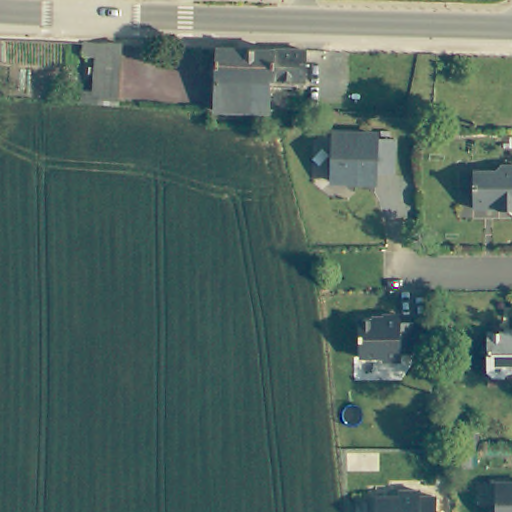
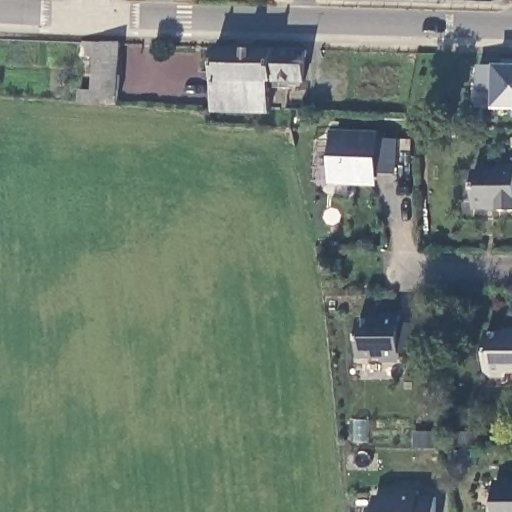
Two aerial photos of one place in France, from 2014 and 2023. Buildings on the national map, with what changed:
unchanged [(82,97),(93,98),(94,62),(82,61),(82,45),(121,47),(119,111),(81,109),(82,97)]
unchanged [(247,116),(210,115),(212,51),(270,52),(268,82),(268,84),(267,114),(267,117),(247,116)]
unchanged [(317,82),(301,82),(301,84),(270,84),(271,52),(317,53),(317,82)]
new [(494,107),(494,91),(476,90),(477,65),(496,66),(512,66),(512,108),(494,107)]
unchanged [(343,132),(363,132),(363,136),(381,136),(381,171),(362,171),(362,174),(343,174),(343,180),(319,180),(320,139),(343,140),(343,132)]
unchanged [(496,216),(496,214),(471,213),(471,176),(493,175),(497,171),(512,170),(512,216),(496,216)]
unchanged [(398,351),(383,352),(383,359),(366,359),(366,355),(342,356),(341,319),(365,318),(365,314),(382,314),(382,322),(397,321),(398,351)]
unchanged [(507,376),(502,381),(492,381),(487,377),(485,373),(485,337),(512,337),(512,376),(507,376)]
unchanged [(462,432),(462,444),(446,444),(446,432),(462,432)]
unchanged [(493,485),(512,485),(512,512),(493,512),(493,485)]
unchanged [(358,503),(381,503),(381,497),(402,497),(402,503),(420,503),(419,512),(358,512),(358,503)]

